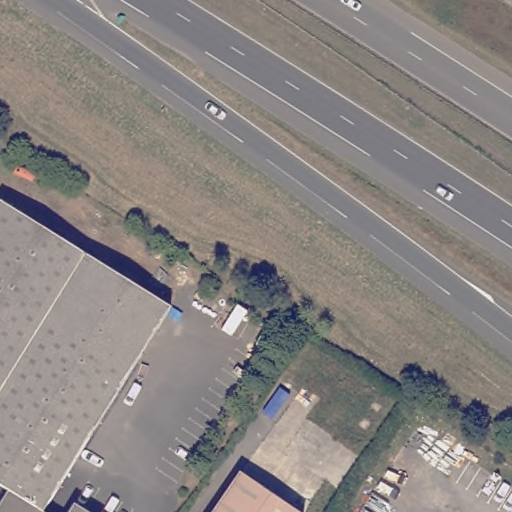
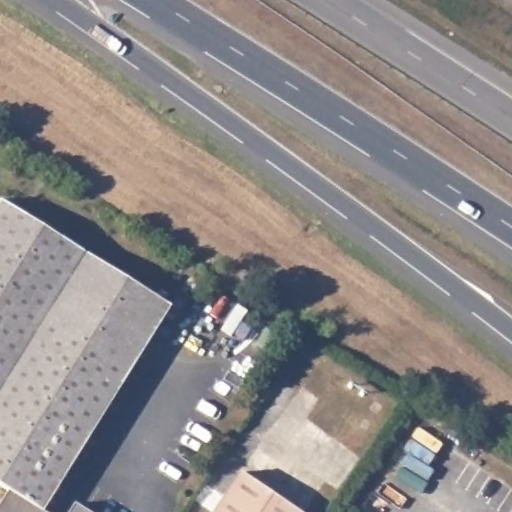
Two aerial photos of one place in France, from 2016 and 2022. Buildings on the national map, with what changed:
unchanged [(176,302),(48,507),(55,512),(0,512),(0,509),(14,486),(0,478),(0,205),(6,196),(176,302)]
unchanged [(247,472),(308,512),(219,512),(247,472)]
unchanged [(82,500),(102,512),(73,512),(82,500)]

